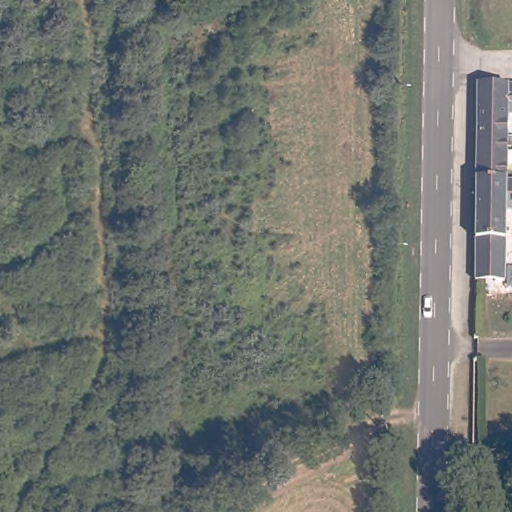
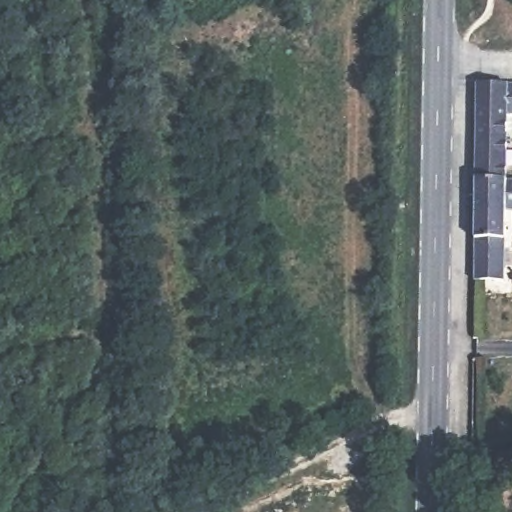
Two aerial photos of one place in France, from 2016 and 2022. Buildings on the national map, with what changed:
unchanged [(507,209),(506,282),(475,282),(477,177),(480,82),(512,82),(512,116),(509,116),(508,177),(512,178),(512,209),(507,209)]

